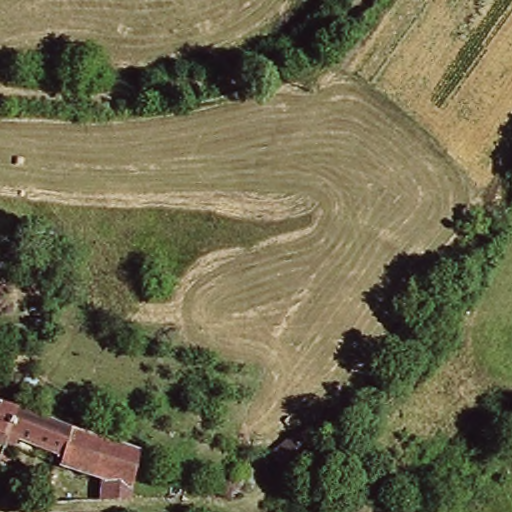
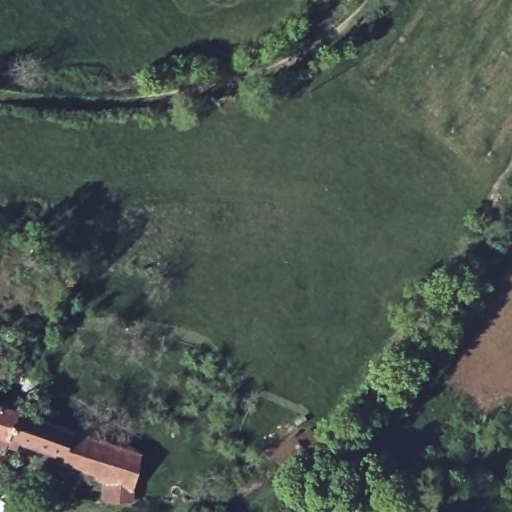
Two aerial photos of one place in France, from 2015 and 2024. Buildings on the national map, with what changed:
unchanged [(4,408),(23,414),(12,444),(0,440),(0,394),(8,397),(4,408)]
unchanged [(68,458),(27,442),(24,449),(12,444),(23,414),(78,432),(146,452),(135,498),(130,501),(109,502),(111,486),(65,467),(68,458)]
unchanged [(310,428),(315,434),(320,441),(287,467),(273,449),(295,430),(301,434),(310,428)]
unchanged [(0,486),(0,475),(8,453),(27,461),(22,474),(16,472),(8,489),(0,486)]

